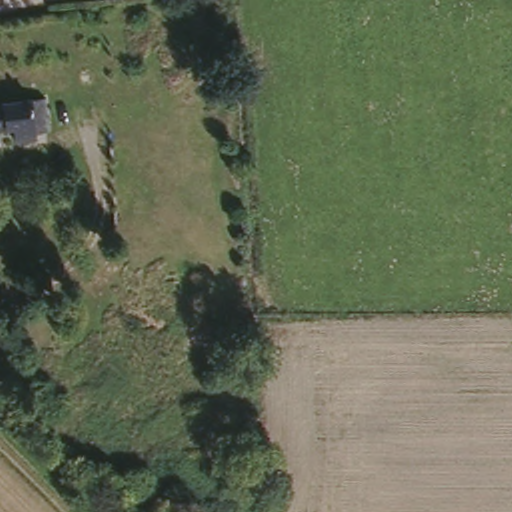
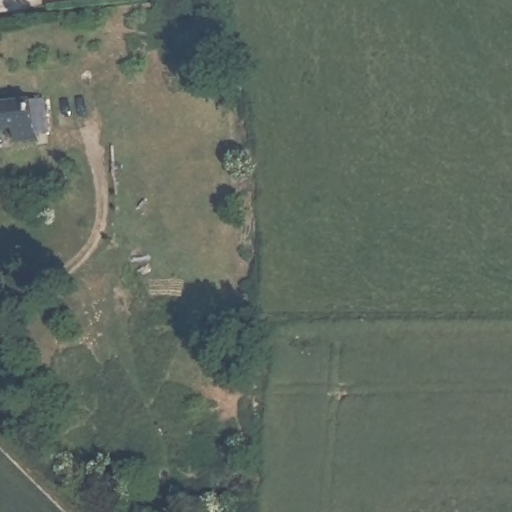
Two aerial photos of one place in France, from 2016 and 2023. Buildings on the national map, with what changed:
unchanged [(48,130),(36,130),(37,140),(13,141),(10,131),(0,132),(0,102),(47,97),(48,130)]
unchanged [(239,430),(242,451),(220,455),(217,432),(239,430)]

